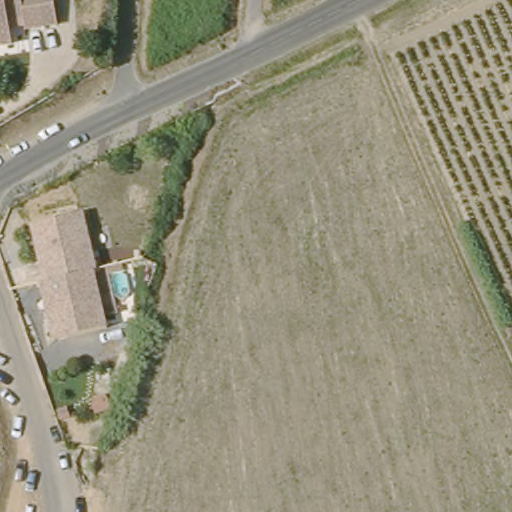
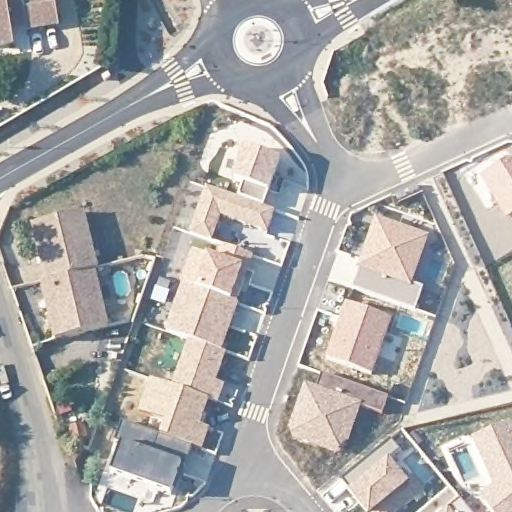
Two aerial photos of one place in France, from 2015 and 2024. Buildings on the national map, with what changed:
unchanged [(22,26),(21,14),(6,16),(9,40),(0,41),(0,0),(49,0),(52,21),(22,26)]
new [(242,146),(282,160),(264,207),(237,196),(241,184),(231,180),(242,146)]
new [(509,218),(481,176),(512,156),(512,216),(509,218)]
new [(205,186),(237,196),(264,207),(275,211),(266,234),(222,218),(212,242),(188,233),(205,186)]
unchanged [(31,226),(82,213),(85,226),(87,232),(91,252),(93,258),(96,271),(93,272),(45,283),(40,265),(36,246),(31,226)]
new [(359,260),(375,217),(429,235),(412,284),(422,287),(414,311),(350,288),(359,260)]
new [(192,248),(216,257),(220,245),(252,255),(232,301),(239,303),(222,352),(186,341),(162,332),(192,248)]
unchanged [(40,284),(45,283),(93,272),(107,328),(54,342),(49,322),(45,302),(40,284)]
new [(346,301),(392,318),(372,375),(325,358),(346,301)]
new [(186,341),(222,352),(226,353),(217,381),(225,385),(217,403),(210,401),(170,385),(186,341)]
new [(321,372),(389,397),(382,415),(362,407),(315,386),(321,372)]
new [(149,377),(170,385),(210,401),(201,425),(211,429),(202,452),(181,445),(160,436),(164,423),(137,412),(149,377)]
new [(305,382),(315,386),(362,407),(339,457),(286,437),(305,382)]
new [(510,421),(512,425),(512,512),(489,512),(479,499),(492,486),(471,438),(510,421)]
new [(117,446),(122,423),(160,436),(181,445),(193,448),(188,468),(184,468),(175,497),(112,476),(122,448),(117,446)]
new [(390,441),(398,450),(389,458),(409,483),(381,511),(382,512),(364,512),(339,482),(390,441)]
new [(450,505),(456,512),(441,512),(450,505)]

